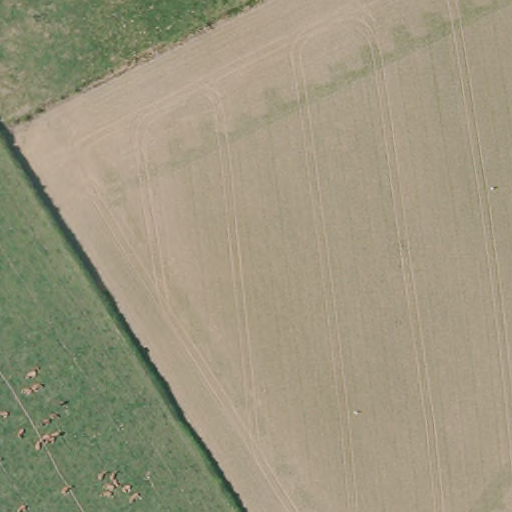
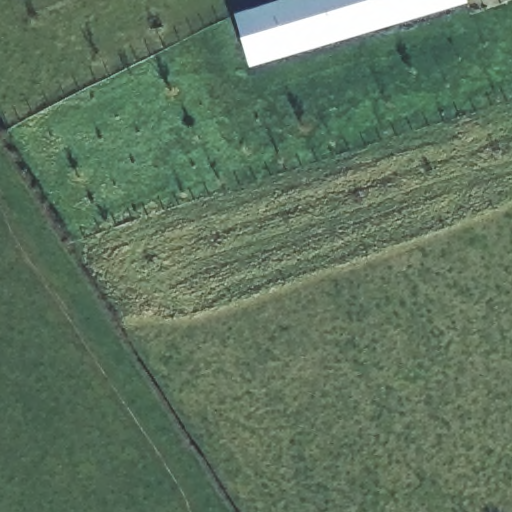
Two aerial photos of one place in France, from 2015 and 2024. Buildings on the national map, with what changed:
new [(250,65),(235,12),(277,0),(467,0),(467,1),(250,65)]

